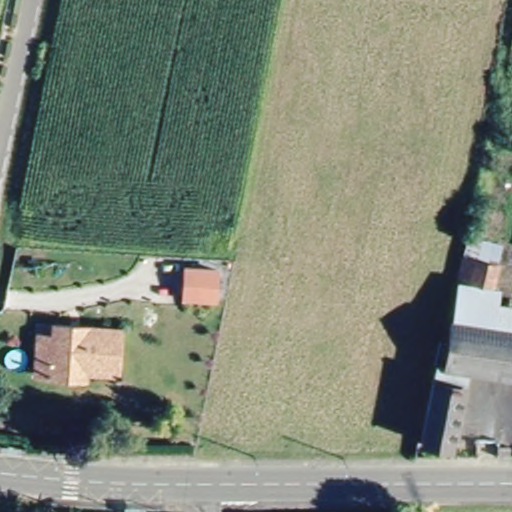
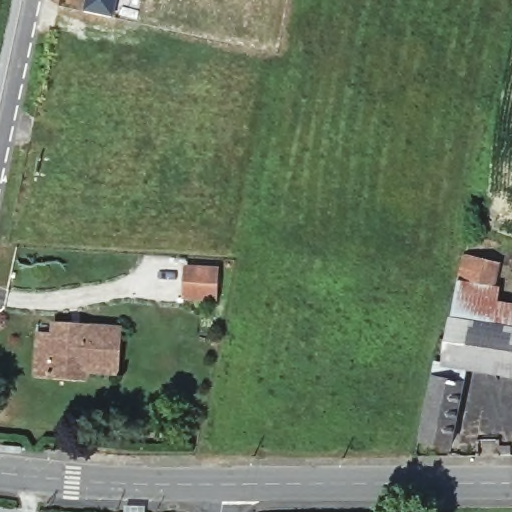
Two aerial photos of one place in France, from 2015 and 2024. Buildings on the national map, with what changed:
new [(117,0),(114,16),(82,9),(85,0),(117,0)]
unchanged [(483,314),(512,321),(512,364),(468,354),(449,431),(418,424),(436,349),(438,349),(463,243),(498,251),(483,314)]
unchanged [(215,295),(184,294),(185,264),(217,265),(215,295)]
unchanged [(32,338),(47,339),(48,323),(120,328),(117,376),(77,373),(77,380),(30,378),(32,338)]

